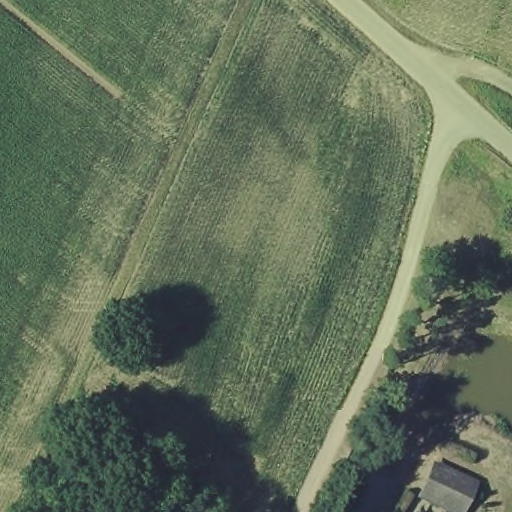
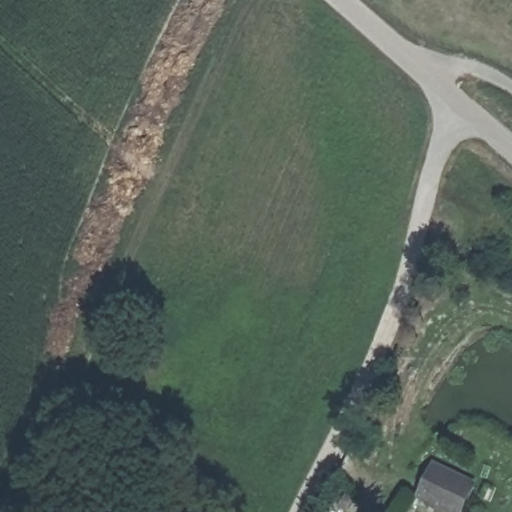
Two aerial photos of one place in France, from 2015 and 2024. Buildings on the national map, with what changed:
unchanged [(410,502),(426,464),(472,486),(461,512),(431,512),(410,502)]

